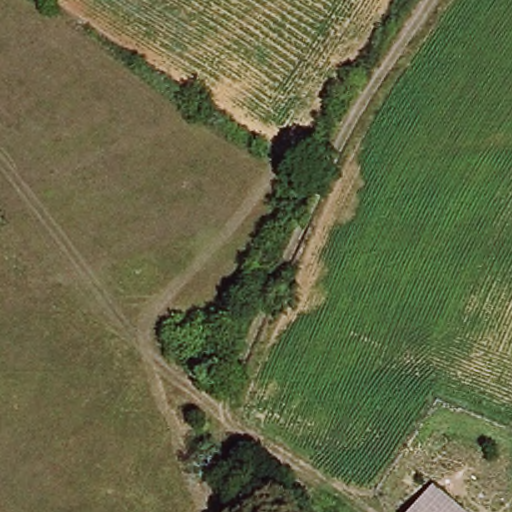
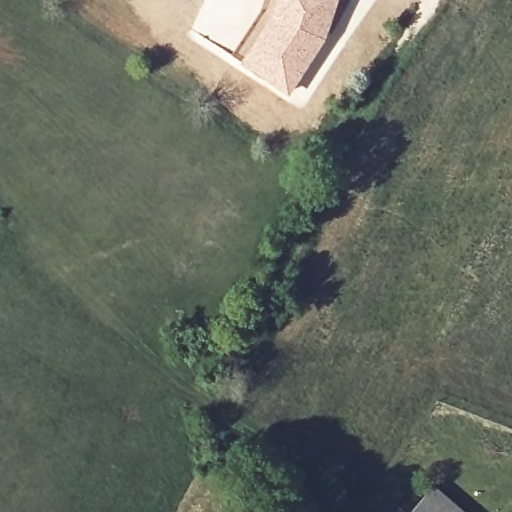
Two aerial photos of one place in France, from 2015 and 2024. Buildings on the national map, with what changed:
new [(266,0),(337,0),(323,42),(288,97),(230,58),(263,11),(266,0)]
unchanged [(438,491),(462,512),(412,512),(438,491)]

